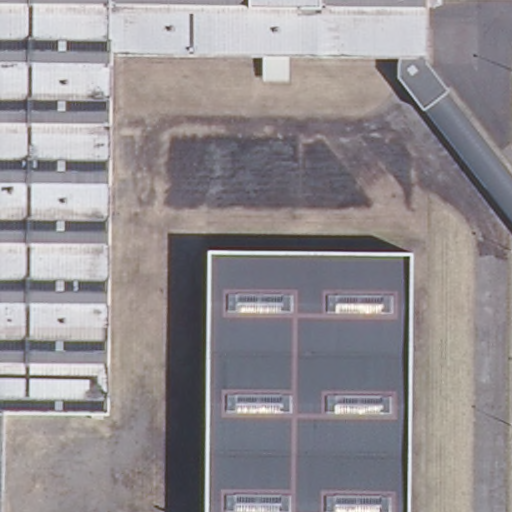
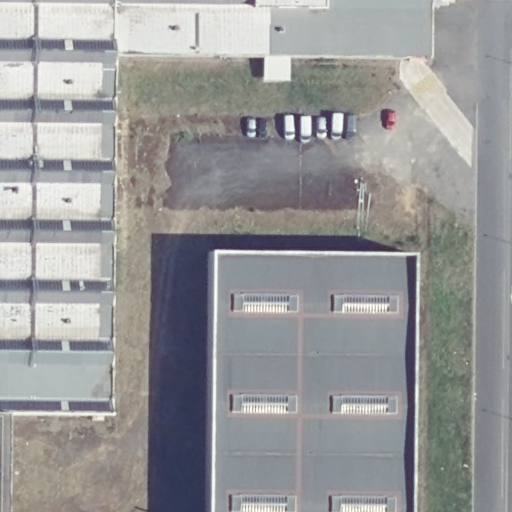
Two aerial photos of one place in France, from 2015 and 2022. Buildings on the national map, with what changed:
unchanged [(428,55),(401,55),(114,52),(110,412),(5,410),(0,410),(0,0),(430,0),(429,55),(428,55)]
unchanged [(399,74),(401,55),(428,55),(428,59),(512,170),(512,221),(399,74)]
unchanged [(209,248),(414,249),(411,512),(206,512),(209,248)]
unchanged [(4,512),(0,512),(0,410),(5,410),(4,512)]

